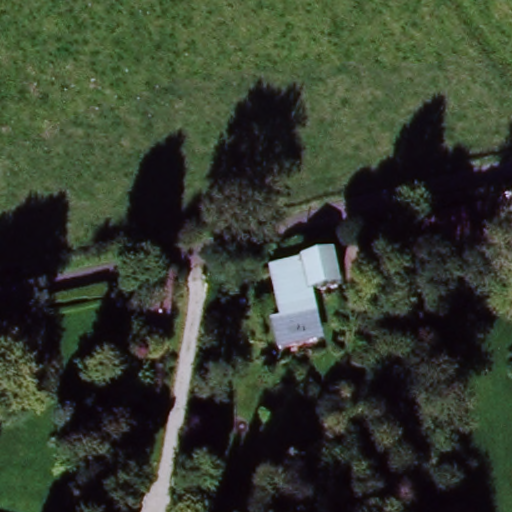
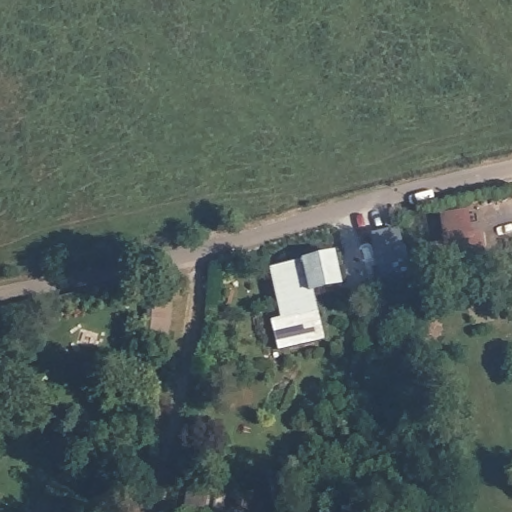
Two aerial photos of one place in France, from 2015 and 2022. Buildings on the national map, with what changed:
unchanged [(367,283),(365,272),(378,269),(371,235),(396,230),(406,275),(367,283)]
unchanged [(273,267),(331,255),(338,286),(316,290),(280,298),(273,267)]
unchanged [(168,337),(150,337),(155,276),(179,270),(168,337)]
unchanged [(316,290),(323,330),(315,331),(317,342),(280,349),(275,322),(284,320),(280,298),(316,290)]

